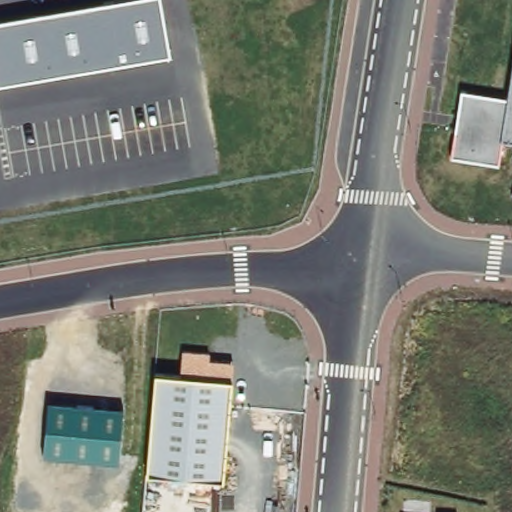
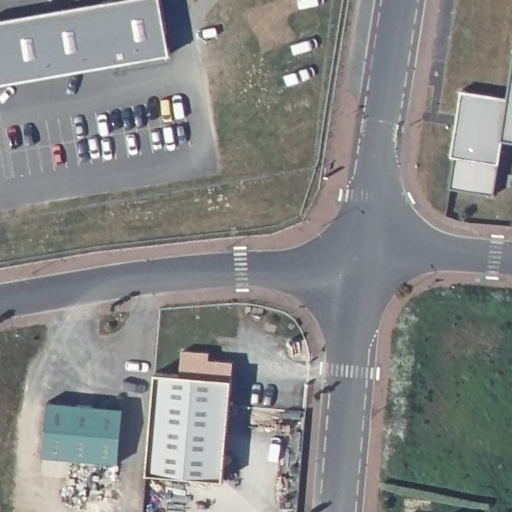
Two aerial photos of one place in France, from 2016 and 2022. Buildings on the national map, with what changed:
unchanged [(113,0),(161,0),(171,54),(0,85),(0,19),(113,0)]
unchanged [(512,140),(501,138),(497,162),(450,156),(461,91),(505,99),(512,55),(512,140)]
unchanged [(182,350),(210,352),(209,358),(233,361),(231,380),(223,481),(147,475),(155,372),(178,375),(182,350)]
unchanged [(118,464),(42,457),(47,401),(124,408),(118,464)]

